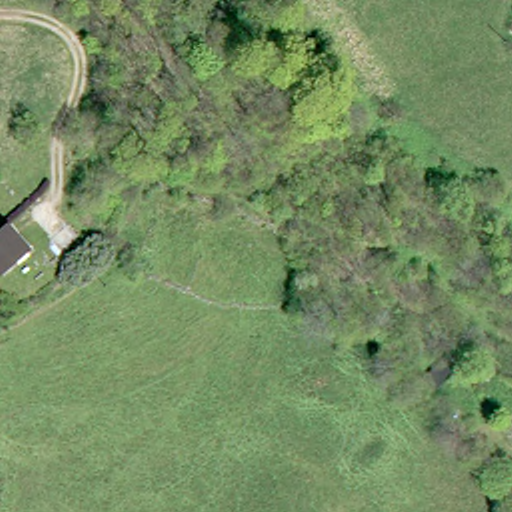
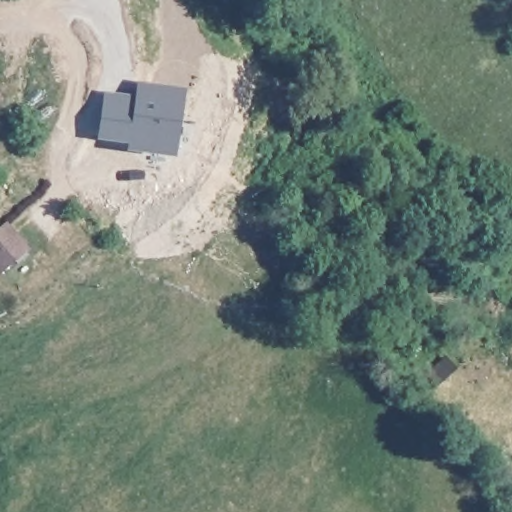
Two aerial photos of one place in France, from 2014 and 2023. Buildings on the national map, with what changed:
new [(109,98),(140,103),(142,89),(180,95),(170,154),(132,147),(133,140),(102,135),(109,98)]
unchanged [(0,274),(0,229),(9,223),(30,252),(0,274)]

